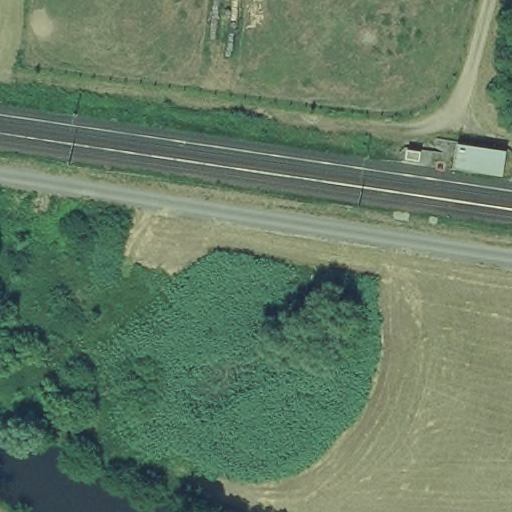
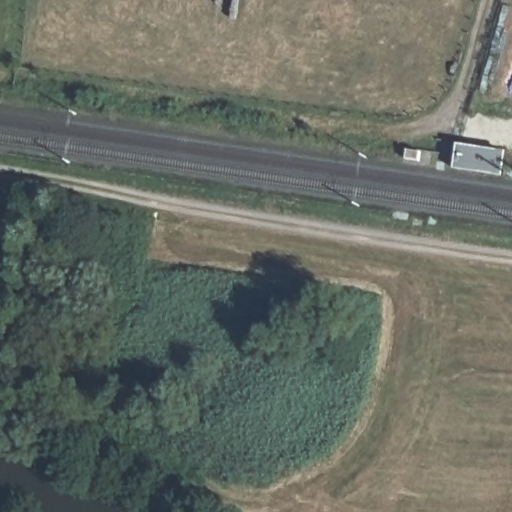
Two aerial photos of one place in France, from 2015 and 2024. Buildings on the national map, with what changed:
unchanged [(509,174),(457,170),(462,141),(512,149),(509,174)]

